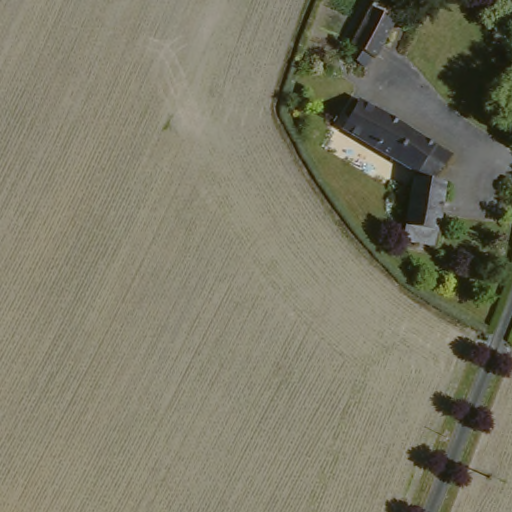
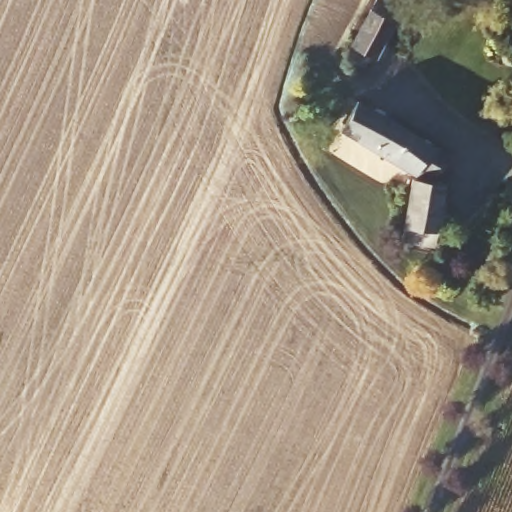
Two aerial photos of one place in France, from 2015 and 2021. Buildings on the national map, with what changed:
unchanged [(367,58),(362,69),(346,62),(347,57),(376,0),(385,0),(393,4),(401,7),(373,59),(367,58)]
unchanged [(358,102),(449,155),(436,177),(411,172),(407,170),(341,132),(353,107),(358,102)]
unchanged [(398,242),(402,223),(411,178),(443,185),(435,228),(432,247),(398,242)]

